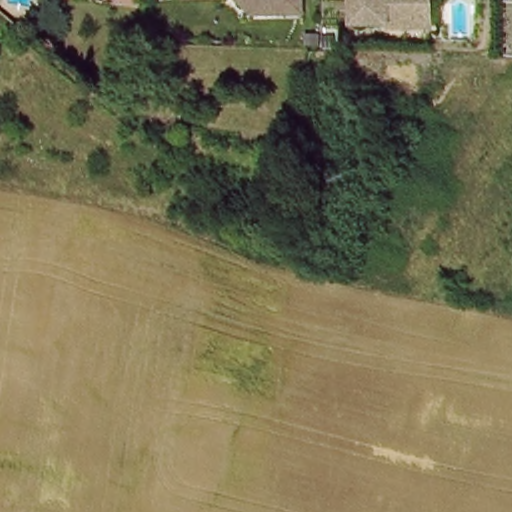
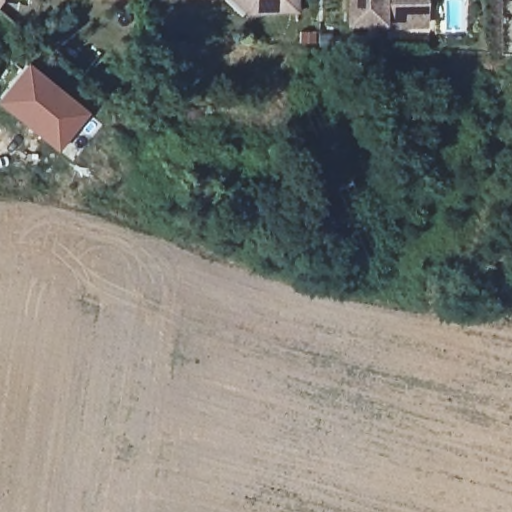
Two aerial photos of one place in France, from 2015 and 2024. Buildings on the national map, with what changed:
unchanged [(245,13),(231,0),(294,0),(294,12),(245,13)]
unchanged [(384,23),(370,23),(349,24),(349,0),(428,0),(428,17),(428,26),(402,26),(384,27),(384,23)]
new [(4,106),(33,70),(93,117),(68,148),(63,154),(37,132),(4,106)]

